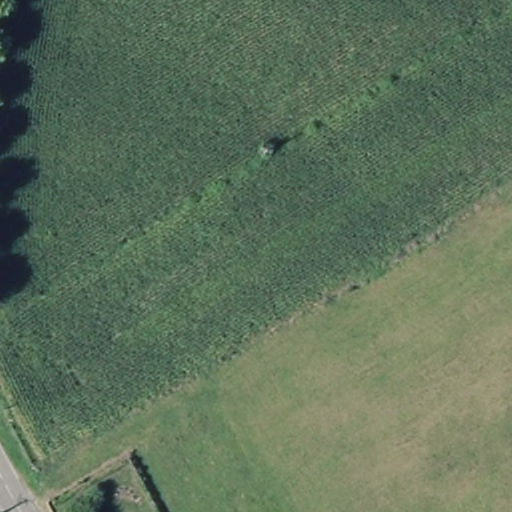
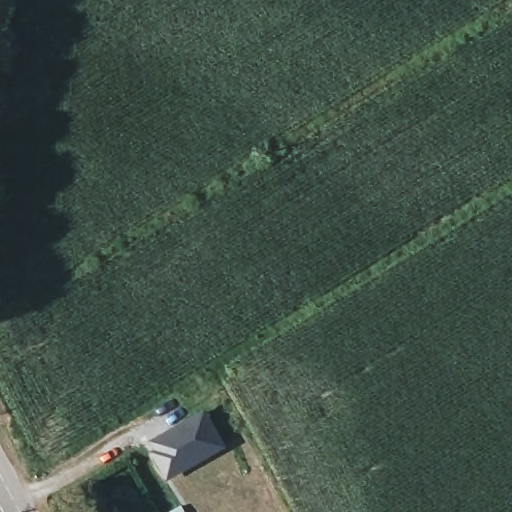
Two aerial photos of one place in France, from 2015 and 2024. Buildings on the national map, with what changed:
new [(159,449),(154,440),(203,412),(222,446),(196,461),(194,458),(165,475),(152,453),(159,449)]

